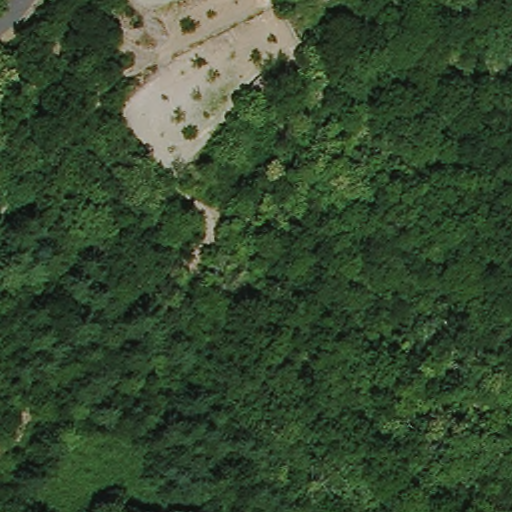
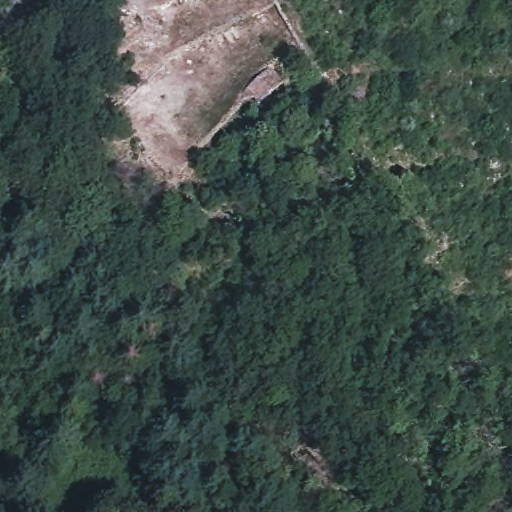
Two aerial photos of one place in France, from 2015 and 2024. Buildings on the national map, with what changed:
unchanged [(200,57),(194,48),(187,40),(215,18),(227,35),(200,57)]

